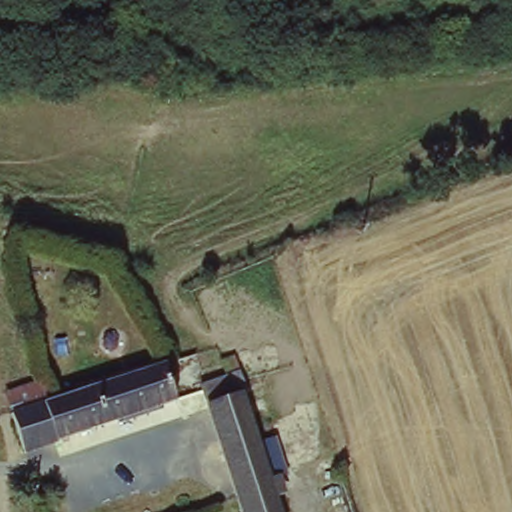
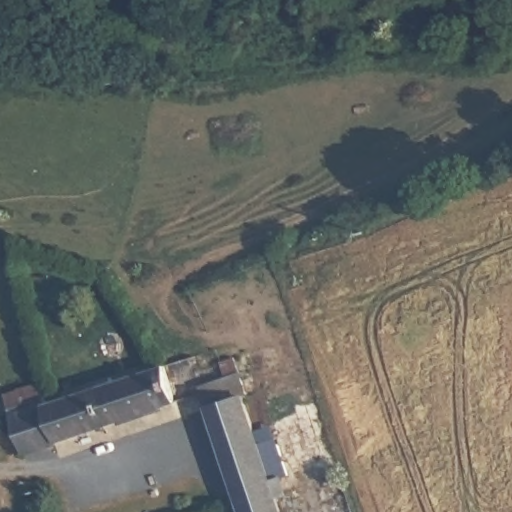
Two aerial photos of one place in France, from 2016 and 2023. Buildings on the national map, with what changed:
unchanged [(164,362),(175,395),(27,443),(16,408),(164,362)]
unchanged [(199,382),(233,373),(242,398),(207,410),(199,382)]
unchanged [(242,398),(268,483),(279,481),(286,502),(276,505),(279,512),(239,512),(207,410),(242,398)]

